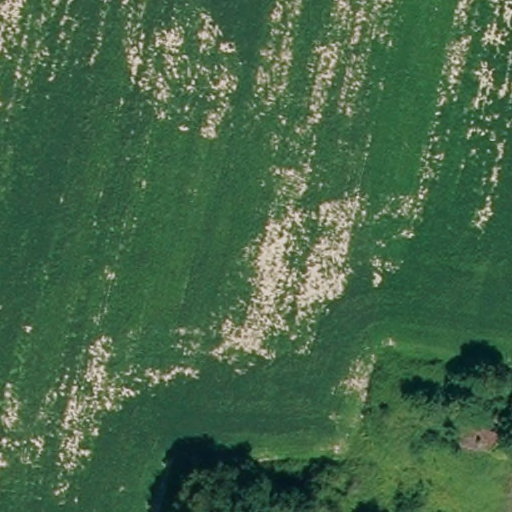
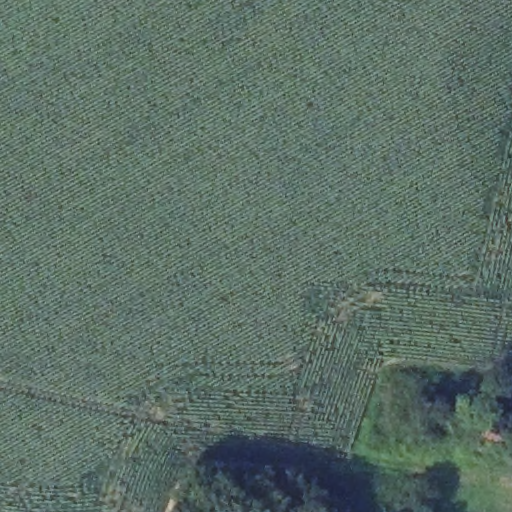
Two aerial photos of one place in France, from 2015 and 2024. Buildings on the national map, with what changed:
unchanged [(474,412),(512,420),(512,449),(469,442),(474,412)]

